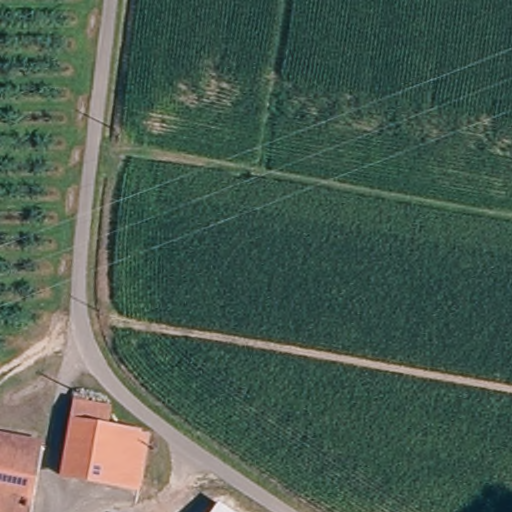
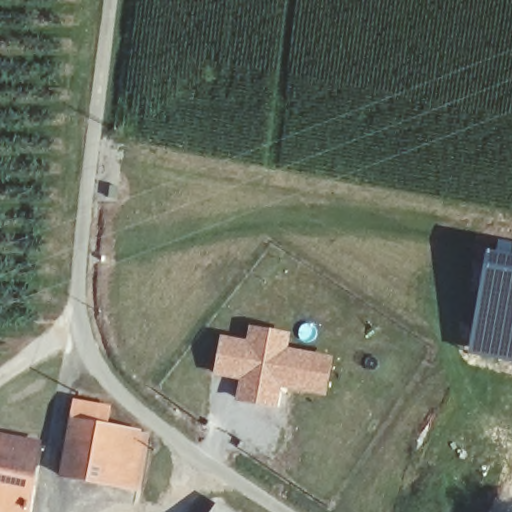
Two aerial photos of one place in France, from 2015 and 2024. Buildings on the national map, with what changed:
new [(486,250),(512,255),(512,362),(467,353),(486,250)]
new [(246,340),(249,326),(292,334),(290,349),(332,357),(325,398),(281,389),(278,410),(236,403),(239,381),(214,376),(221,336),(246,340)]
unchanged [(106,429),(147,436),(138,490),(62,477),(75,402),(110,408),(106,429)]
unchanged [(28,512),(0,512),(0,438),(41,447),(28,512)]
unchanged [(219,501),(234,512),(211,512),(219,501)]

